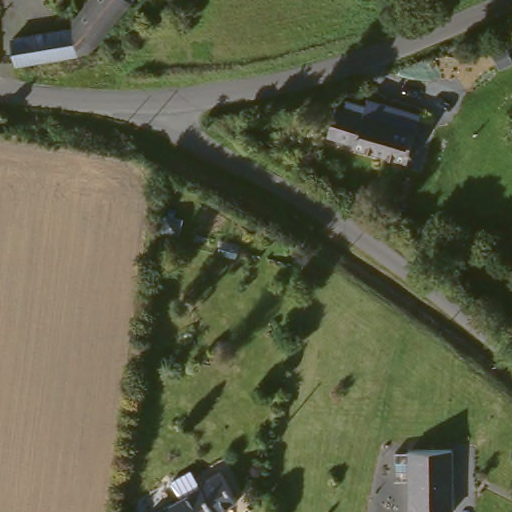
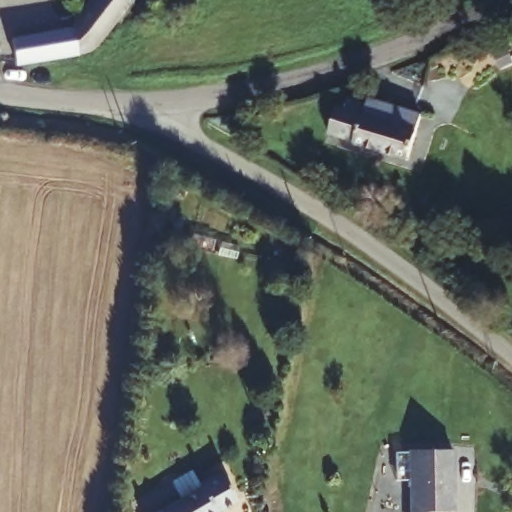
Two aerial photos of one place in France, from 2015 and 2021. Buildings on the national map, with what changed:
unchanged [(123,0),(129,6),(84,58),(81,57),(72,19),(87,0),(123,0)]
unchanged [(123,0),(134,0),(129,6),(123,0)]
unchanged [(11,65),(8,39),(51,32),(50,21),(72,19),(81,57),(11,65)]
unchanged [(377,90),(421,104),(417,125),(416,129),(409,157),(358,140),(357,135),(325,126),(334,99),(371,111),(377,90)]
unchanged [(161,243),(162,228),(177,230),(175,245),(161,243)]
unchanged [(457,437),(460,501),(449,501),(450,512),(423,512),(422,466),(404,467),(402,442),(420,442),(421,438),(457,437)]
unchanged [(208,480),(223,493),(207,512),(187,512),(183,507),(174,498),(198,472),(208,480)]
unchanged [(164,509),(174,498),(183,507),(187,512),(162,512),(164,509)]

